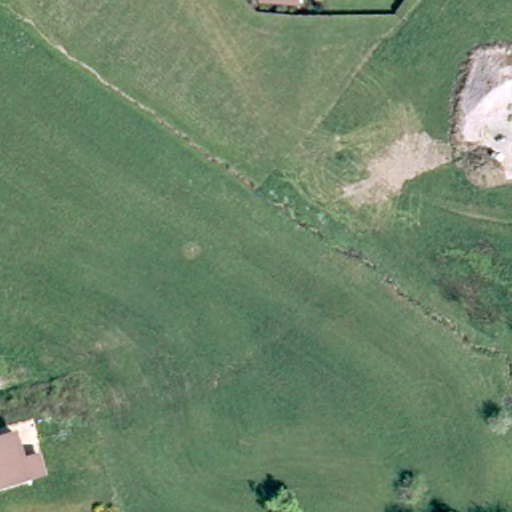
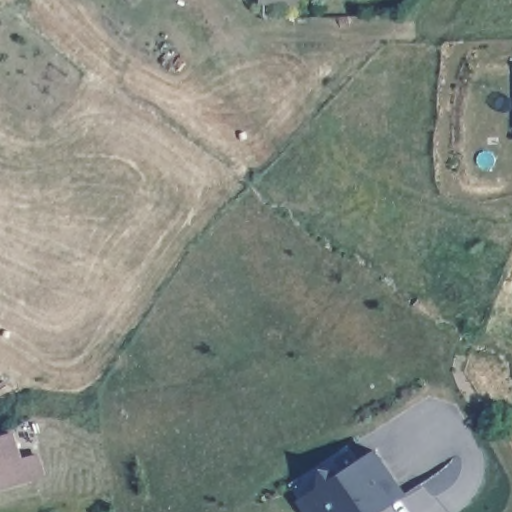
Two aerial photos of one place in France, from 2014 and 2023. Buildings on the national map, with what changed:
unchanged [(300,5),(260,0),(300,0),(300,5)]
unchanged [(42,476),(27,480),(0,484),(0,442),(15,438),(22,461),(39,458),(42,476)]
new [(379,512),(306,512),(298,499),(319,486),(323,467),(346,470),(378,447),(407,492),(379,512)]

